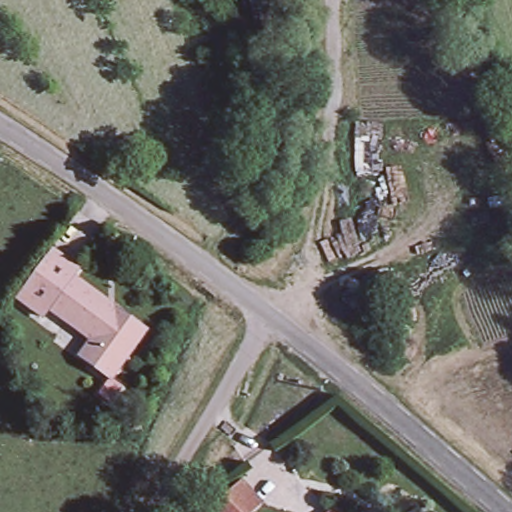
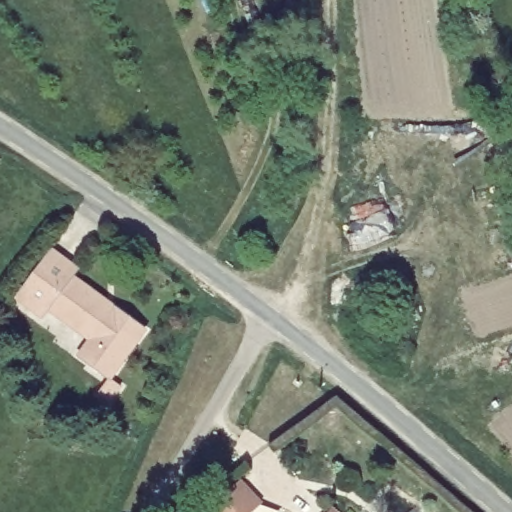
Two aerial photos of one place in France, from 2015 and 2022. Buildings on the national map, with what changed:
unchanged [(112,401),(102,393),(114,376),(94,361),(85,354),(96,341),(72,322),(55,309),(49,317),(24,297),(59,251),(85,270),(80,277),(152,331),(117,378),(125,385),(112,401)]
unchanged [(263,508),(259,512),(214,512),(220,506),(242,485),(263,508)]
unchanged [(340,512),(338,512),(339,511),(340,512)]

